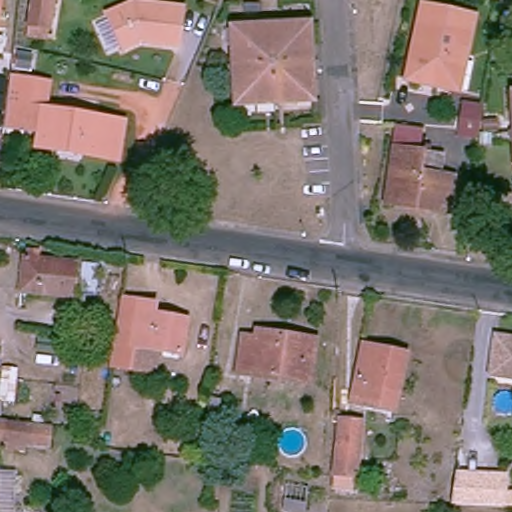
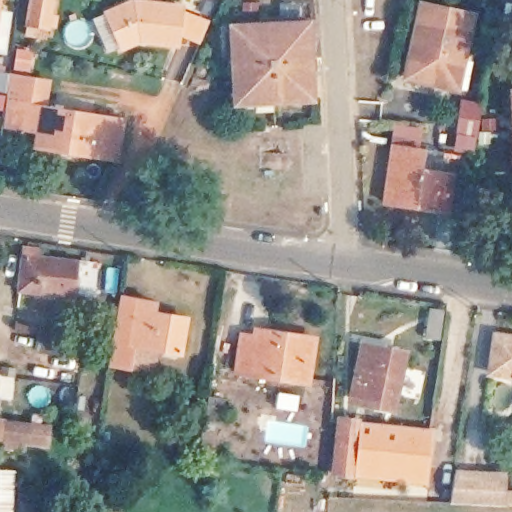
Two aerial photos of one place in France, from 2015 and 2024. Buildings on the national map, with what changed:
unchanged [(0,0),(1,0),(0,8),(0,0)]
unchanged [(31,29),(35,0),(54,0),(50,31),(31,29)]
unchanged [(132,1),(181,6),(177,44),(139,40),(121,48),(106,13),(132,1)]
unchanged [(396,94),(410,20),(462,30),(455,68),(448,104),(439,102),(396,94)]
unchanged [(315,100),(240,102),(235,25),(310,22),(315,100)]
unchanged [(6,128),(13,74),(54,80),(50,104),(41,102),(38,131),(6,128)]
unchanged [(458,135),(460,127),(463,99),(483,101),(478,129),(477,136),(458,135)]
unchanged [(50,104),(118,113),(114,147),(37,136),(38,131),(41,102),(50,104)]
unchanged [(416,173),(442,176),(438,212),(380,205),(387,150),(419,155),(416,173)]
unchanged [(72,298),(18,291),(25,253),(78,261),(72,298)]
unchanged [(159,303),(157,313),(189,320),(182,353),(164,350),(160,372),(113,364),(121,297),(159,303)]
new [(427,307),(445,308),(440,340),(423,339),(427,307)]
unchanged [(239,367),(246,328),(262,330),(262,325),(318,336),(310,379),(239,367)]
unchanged [(491,365),(497,329),(512,331),(512,369),(491,365)]
unchanged [(355,391),(363,339),(408,348),(397,406),(382,404),(383,398),(367,394),(355,391)]
unchanged [(341,417),(362,419),(358,475),(356,486),(337,484),(337,471),(341,417)]
new [(432,430),(427,485),(357,478),(358,475),(362,421),(432,430)]
unchanged [(0,423),(44,428),(43,446),(0,441),(0,423)]
unchanged [(506,478),(507,505),(471,504),(453,503),(455,493),(460,475),(477,476),(506,478)]
demolished [(306,512),(281,512),(286,486),(310,490),(306,512)]

